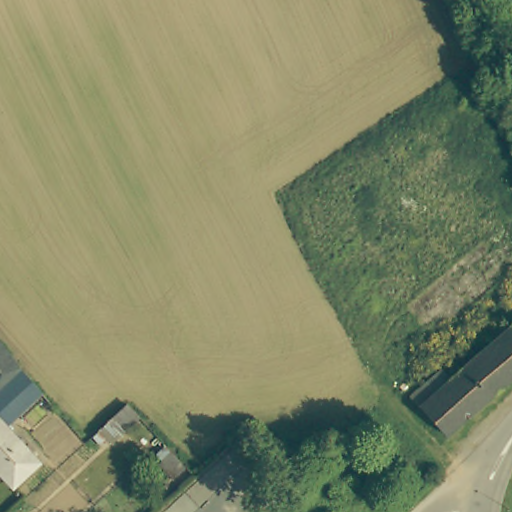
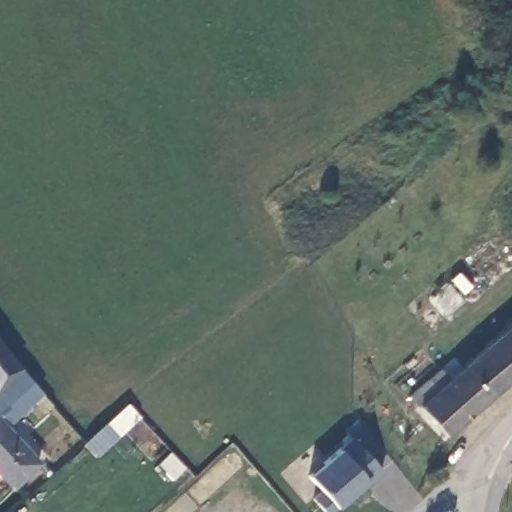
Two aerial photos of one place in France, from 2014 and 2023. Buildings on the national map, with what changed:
unchanged [(443,361),(452,371),(512,319),(512,372),(448,426),(413,386),(443,361)]
unchanged [(15,365),(17,367),(28,378),(0,405),(0,345),(15,365)]
unchanged [(131,402),(143,414),(122,433),(111,420),(131,402)]
unchanged [(11,485),(0,473),(0,421),(37,460),(11,485)]
new [(308,473),(338,447),(352,435),(380,470),(332,512),(322,512),(309,497),(319,488),(308,473)]
unchanged [(189,466),(178,476),(164,460),(175,450),(189,466)]

